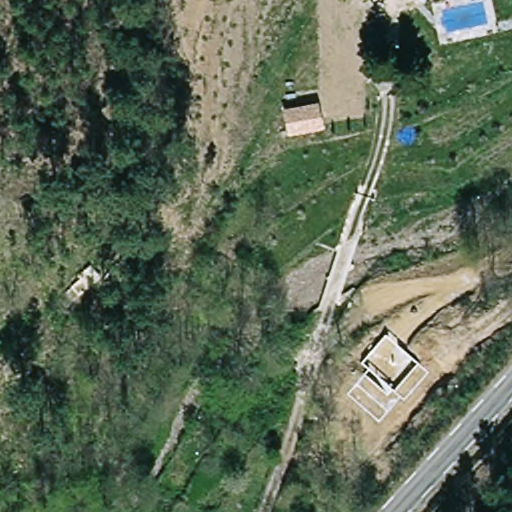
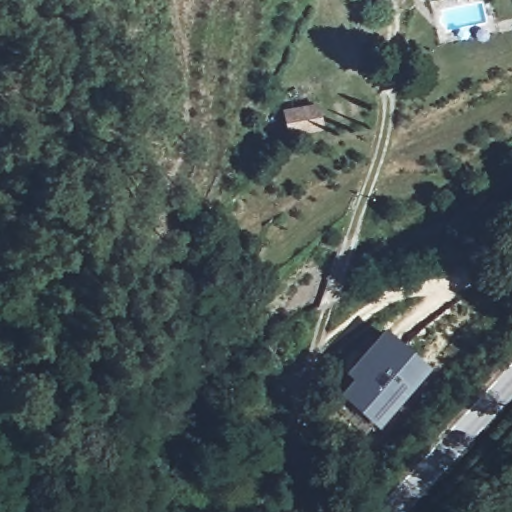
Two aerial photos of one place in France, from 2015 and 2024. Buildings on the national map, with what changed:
unchanged [(318,106),(324,128),(294,133),(289,111),(318,106)]
new [(340,392),(353,377),(346,370),(385,327),(432,369),(380,428),(340,392)]

